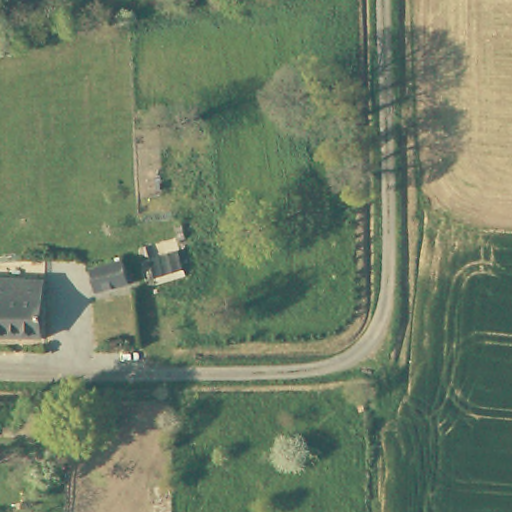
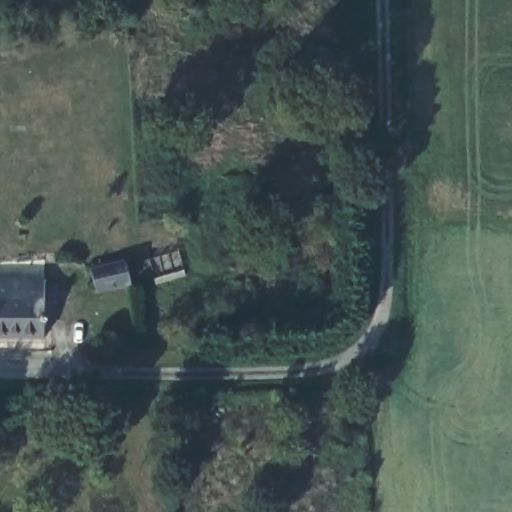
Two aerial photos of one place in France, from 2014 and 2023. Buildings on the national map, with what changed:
unchanged [(117,267),(122,287),(89,295),(84,275),(117,267)]
unchanged [(43,295),(0,295),(0,275),(44,275),(43,295)]
unchanged [(42,333),(0,333),(0,295),(43,295),(42,333)]

